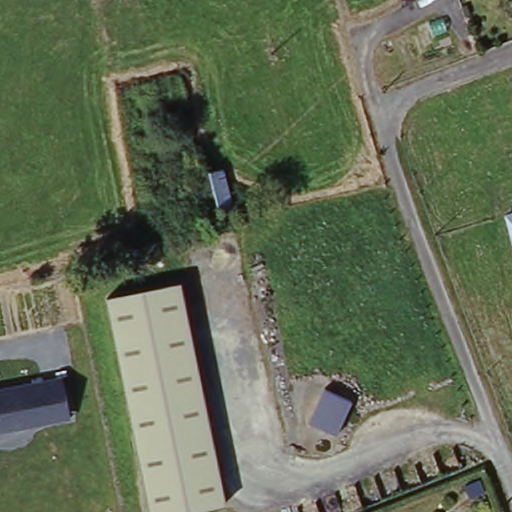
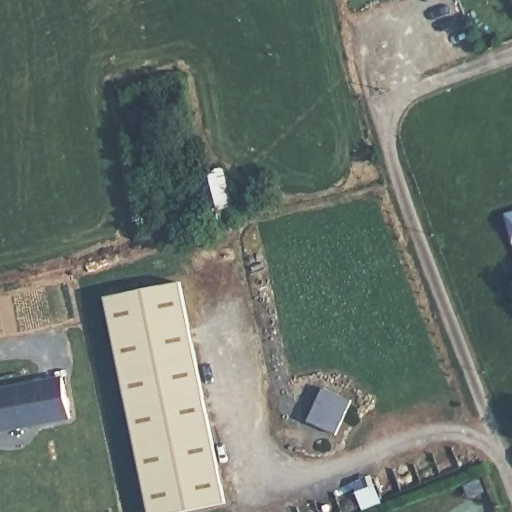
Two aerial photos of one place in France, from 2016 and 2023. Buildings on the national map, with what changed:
unchanged [(221,172),(233,221),(212,225),(201,177),(221,172)]
unchanged [(504,210),(512,207),(512,239),(504,210)]
unchanged [(184,286),(226,507),(205,512),(152,512),(112,302),(184,286)]
unchanged [(69,415),(0,428),(0,386),(58,370),(69,415)]
unchanged [(306,427),(326,392),(357,406),(339,441),(306,427)]

